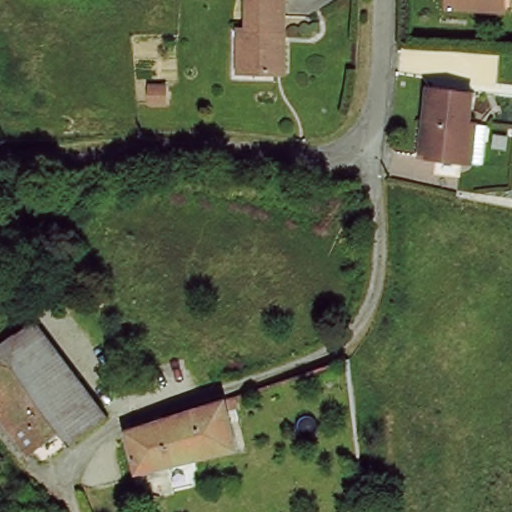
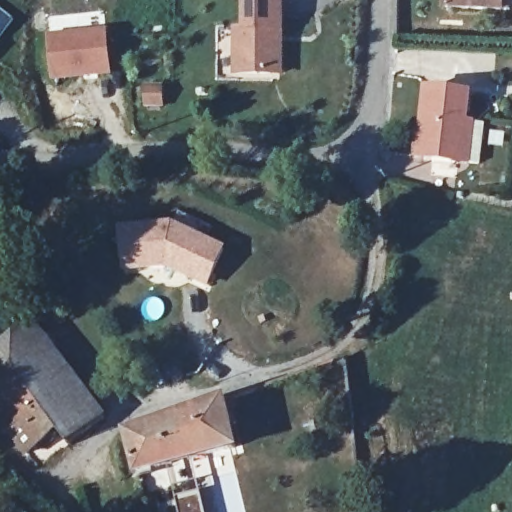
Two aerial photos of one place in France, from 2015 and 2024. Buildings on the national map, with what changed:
unchanged [(274,73),(238,73),(239,30),(247,29),(248,0),(286,0),(286,37),(276,37),(274,73)]
unchanged [(444,11),(444,0),(511,0),(510,13),(444,11)]
new [(109,31),(114,76),(53,82),(49,36),(109,31)]
unchanged [(420,158),(427,88),(473,93),(469,123),(464,162),(420,158)]
new [(173,224),(179,213),(213,229),(206,239),(228,249),(208,288),(164,269),(123,272),(118,228),(173,224)]
unchanged [(39,326),(112,420),(102,425),(81,437),(70,444),(62,432),(9,349),(39,326)]
unchanged [(31,449),(17,431),(0,411),(0,356),(6,353),(9,349),(62,432),(31,449)]
unchanged [(133,432),(225,405),(237,444),(238,447),(137,473),(127,434),(133,432)]

